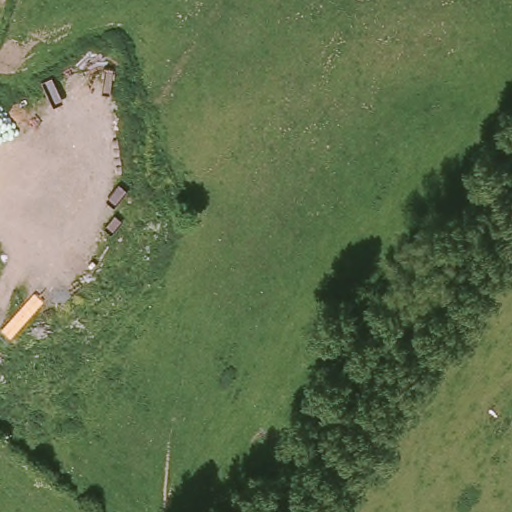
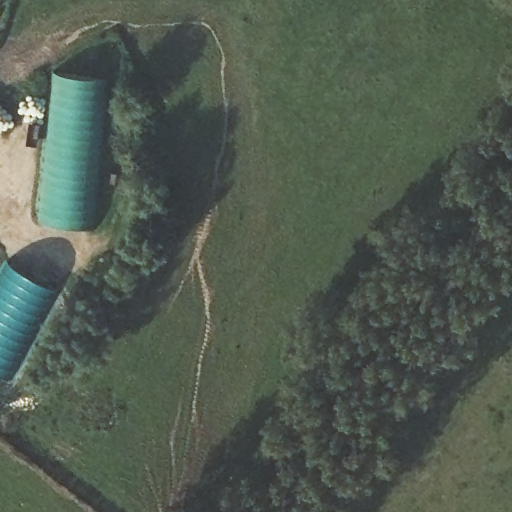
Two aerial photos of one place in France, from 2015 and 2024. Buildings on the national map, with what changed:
new [(39,220),(57,76),(112,82),(96,227),(39,220)]
new [(0,373),(0,272),(7,259),(62,288),(15,381),(0,373)]

